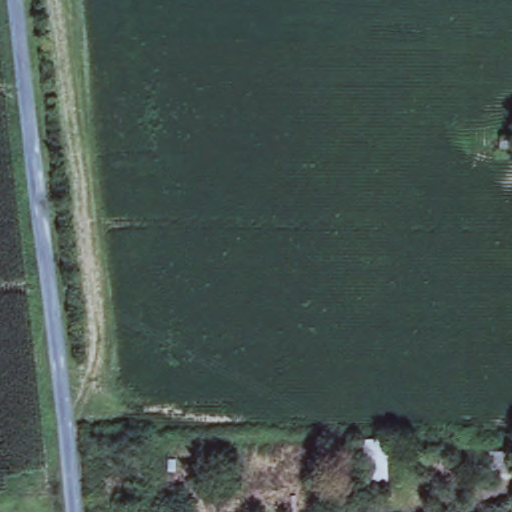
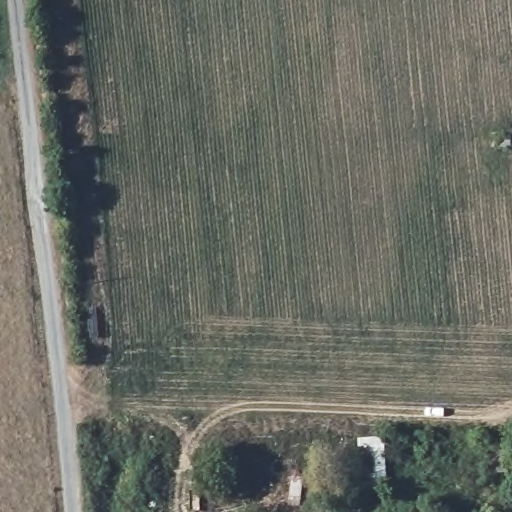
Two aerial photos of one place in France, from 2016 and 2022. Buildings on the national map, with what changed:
unchanged [(356,443),(383,446),(386,493),(357,491),(356,443)]

